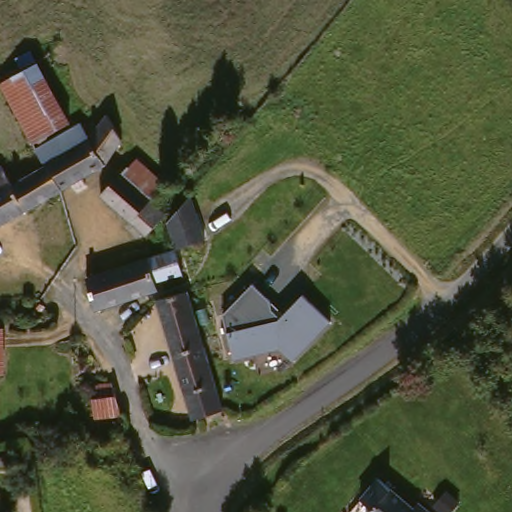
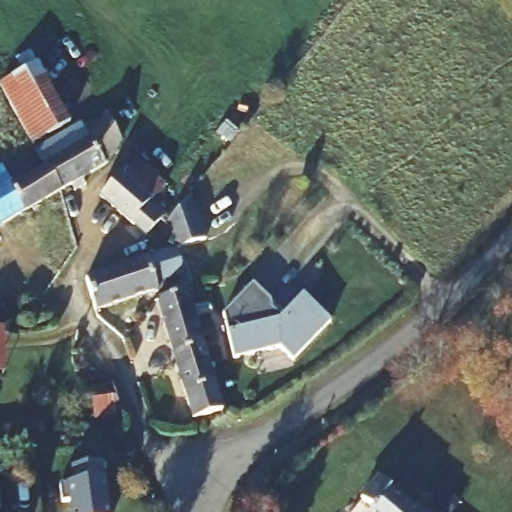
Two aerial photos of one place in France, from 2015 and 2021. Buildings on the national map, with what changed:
unchanged [(36,133),(11,90),(5,79),(39,60),(71,114),(36,133)]
unchanged [(50,159),(49,158),(40,141),(74,122),(83,139),(104,112),(134,137),(117,160),(66,187),(50,159)]
unchanged [(136,152),(164,176),(151,190),(167,204),(157,216),(148,226),(104,189),(136,152)]
unchanged [(7,156),(18,176),(49,158),(50,159),(66,187),(0,223),(0,160),(7,156)]
unchanged [(186,187),(199,231),(169,240),(161,214),(186,187)]
unchanged [(84,263),(169,240),(174,264),(150,270),(152,279),(91,295),(84,263)]
unchanged [(180,280),(213,399),(187,406),(151,288),(180,280)]
unchanged [(268,301),(269,310),(277,318),(299,295),(327,322),(289,362),(276,349),(230,357),(221,316),(250,285),(268,301)]
unchanged [(3,367),(0,368),(0,322),(3,367)]
unchanged [(118,421),(96,422),(90,392),(113,391),(118,421)]
new [(106,478),(109,512),(71,512),(69,501),(61,503),(59,485),(73,482),(71,467),(103,462),(106,478)]
unchanged [(362,508),(368,501),(356,492),(373,470),(409,498),(414,492),(439,512),(366,512),(362,508)]

